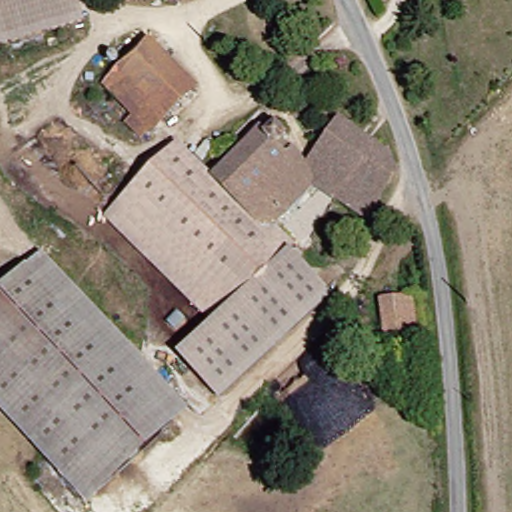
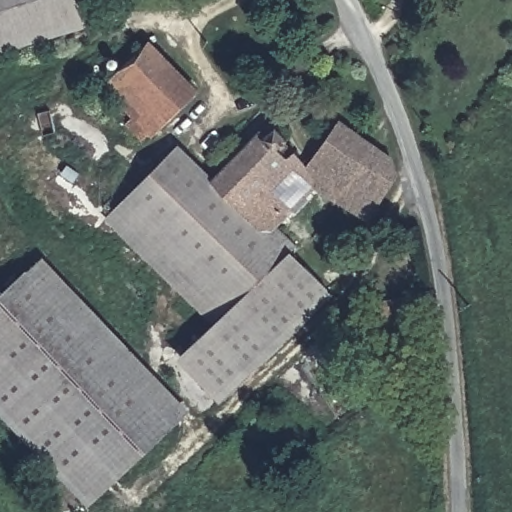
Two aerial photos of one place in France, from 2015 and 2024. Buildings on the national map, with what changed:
unchanged [(0,52),(0,0),(66,0),(74,33),(0,52)]
unchanged [(140,135),(95,89),(140,46),(183,94),(140,135)]
unchanged [(313,188),(266,230),(283,252),(279,254),(204,330),(96,223),(167,151),(206,191),(265,130),(301,172),(313,188)]
unchanged [(385,184),(359,229),(313,188),(301,172),(330,130),(380,163),(385,184)]
unchanged [(320,292),(212,401),(174,359),(204,330),(279,254),(320,292)]
unchanged [(0,408),(0,293),(26,267),(174,415),(91,499),(0,408)]
unchanged [(382,335),(377,297),(417,292),(423,334),(382,335)]

